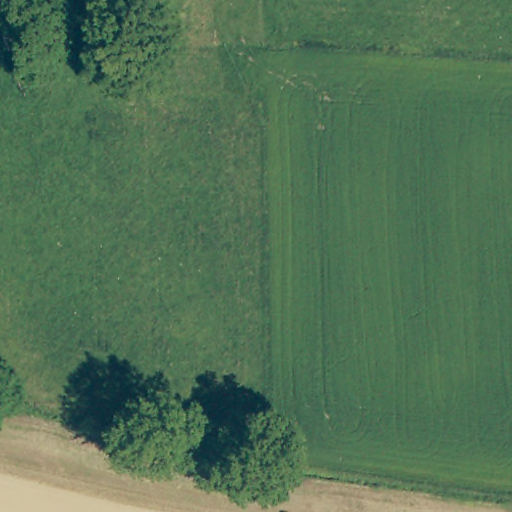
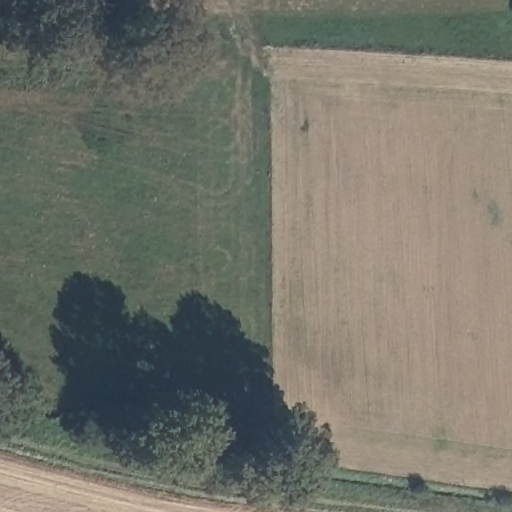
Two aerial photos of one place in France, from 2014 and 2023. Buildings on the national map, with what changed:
[]

